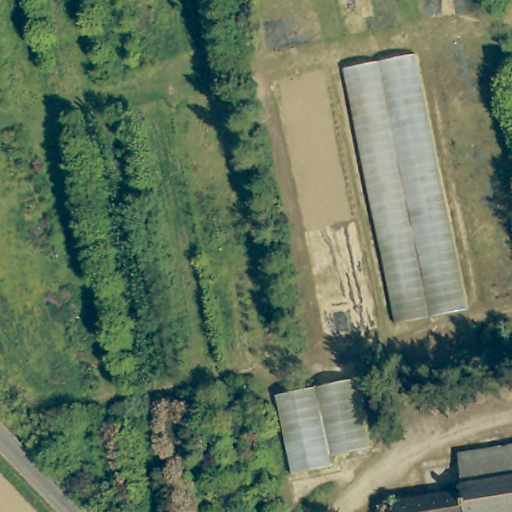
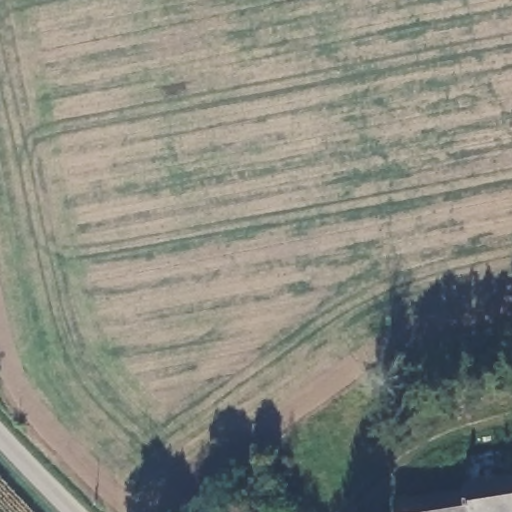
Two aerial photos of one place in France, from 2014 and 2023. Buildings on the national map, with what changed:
demolished [(463,312),(393,323),(342,71),(416,54),(463,312)]
demolished [(355,379),(370,450),(328,459),(329,467),(287,481),(273,396),(355,379)]
unchanged [(457,455),(512,447),(512,473),(462,481),(457,455)]
unchanged [(394,512),(393,500),(463,488),(462,481),(512,473),(512,512),(394,512)]

